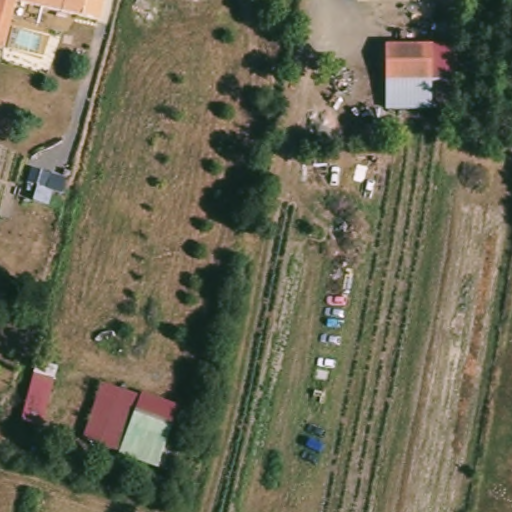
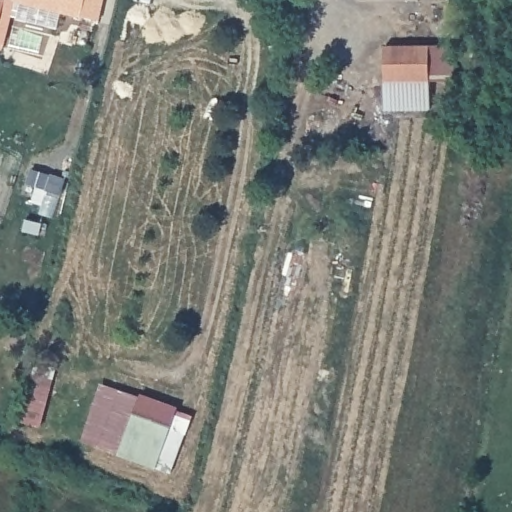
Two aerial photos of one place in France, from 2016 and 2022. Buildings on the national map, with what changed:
unchanged [(0,27),(0,0),(6,0),(0,27)]
unchanged [(101,24),(22,6),(23,0),(106,0),(101,24)]
unchanged [(431,48),(429,79),(385,77),(386,46),(431,48)]
unchanged [(385,77),(429,79),(430,110),(384,112),(385,77)]

